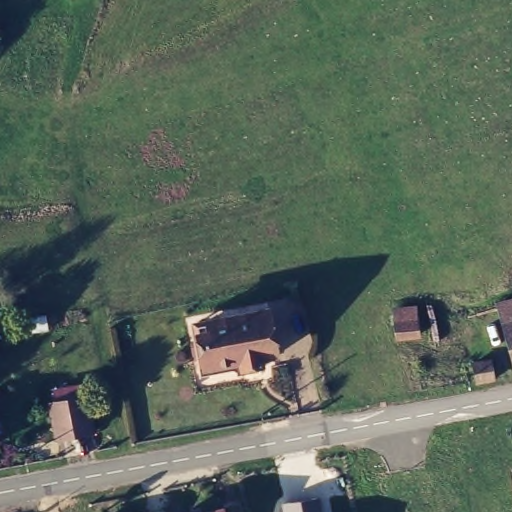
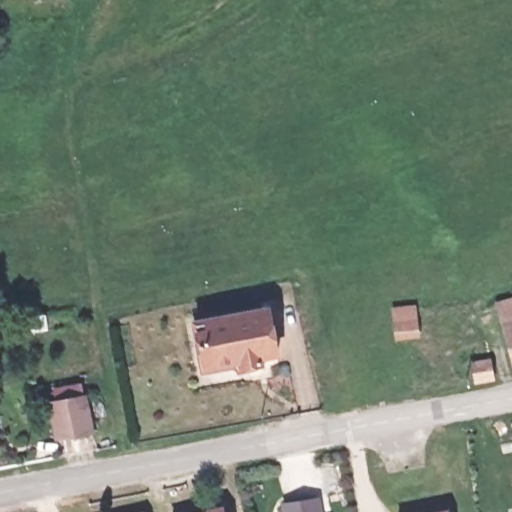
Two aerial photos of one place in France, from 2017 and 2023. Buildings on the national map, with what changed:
unchanged [(512,297),(512,343),(501,300),(512,297)]
unchanged [(193,319),(203,316),(261,304),(269,346),(255,351),(253,357),(233,361),(230,354),(202,360),(195,337),(193,319)]
unchanged [(402,327),(399,310),(417,308),(420,324),(402,327)]
unchanged [(488,357),(492,375),(472,379),(470,361),(488,357)]
unchanged [(57,431),(49,397),(83,390),(91,425),(57,431)]
unchanged [(320,494),(324,512),(286,512),(284,501),(320,494)]
unchanged [(177,512),(176,510),(224,499),(226,512),(177,512)]
unchanged [(143,512),(128,512),(142,508),(143,512)]

